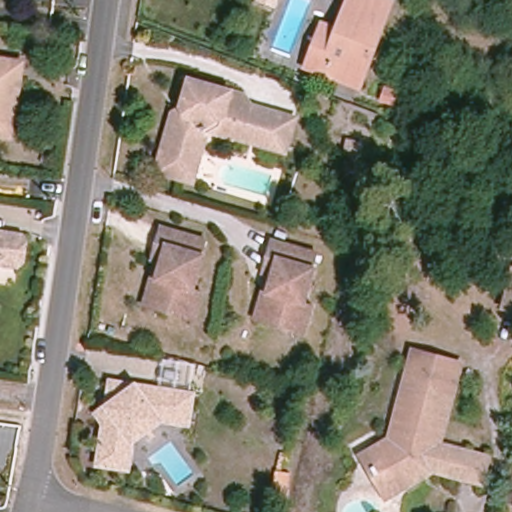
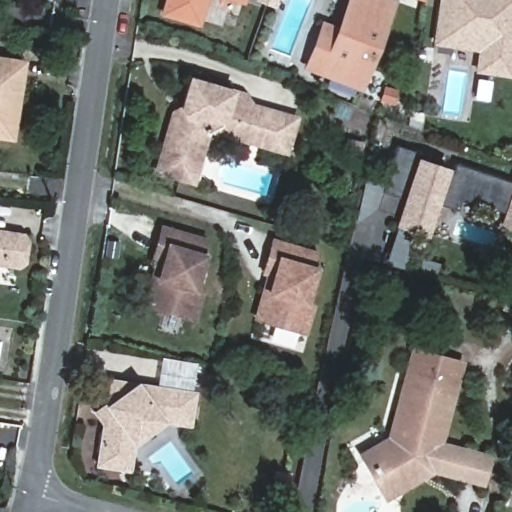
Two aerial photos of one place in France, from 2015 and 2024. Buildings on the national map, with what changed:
new [(200,27),(160,15),(165,0),(208,0),(200,27)]
new [(244,5),(227,0),(246,0),(244,5)]
unchanged [(360,86),(310,67),(320,39),(335,44),(352,0),(393,0),(360,86)]
new [(474,72),(477,51),(433,45),(439,0),(512,0),(512,77),(474,72)]
unchanged [(10,107),(18,109),(13,139),(0,136),(0,58),(17,61),(10,107)]
unchanged [(237,94),(234,101),(300,120),(289,157),(210,135),(194,186),(153,175),(170,115),(178,119),(190,79),(237,94)]
new [(499,225),(503,212),(460,198),(457,209),(437,202),(426,235),(394,225),(396,217),(375,210),(396,150),(451,167),(452,165),(512,184),(512,229),(499,225)]
unchanged [(208,241),(194,288),(202,291),(194,318),(146,305),(159,261),(154,260),(164,227),(208,241)]
unchanged [(29,240),(27,261),(21,266),(3,264),(0,264),(0,232),(24,234),(29,240)]
unchanged [(305,302),(313,305),(305,332),(257,319),(270,274),(265,272),(274,242),(319,255),(305,302)]
unchanged [(497,315),(511,267),(512,267),(512,319),(497,315)]
unchanged [(440,445),(489,458),(483,483),(437,471),(388,498),(364,457),(390,441),(415,352),(459,364),(440,445)]
unchanged [(126,467),(96,462),(101,422),(97,416),(94,412),(104,404),(108,378),(190,391),(187,421),(159,417),(130,438),(126,467)]

